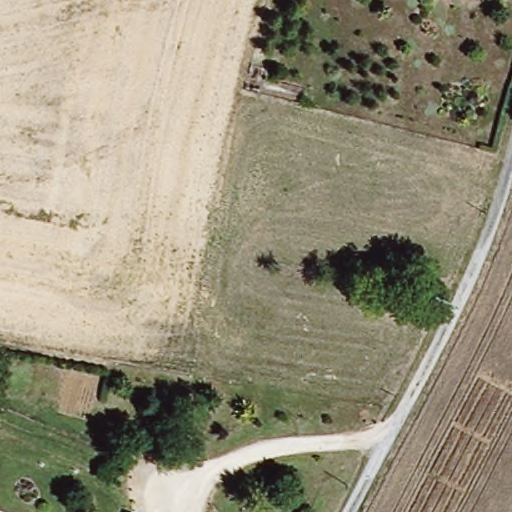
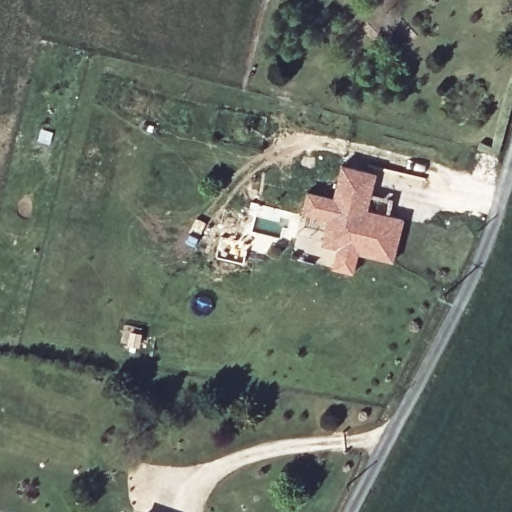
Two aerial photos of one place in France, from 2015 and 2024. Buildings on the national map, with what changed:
new [(308,191),(335,197),(343,165),(377,174),(371,196),(391,201),(387,216),(403,219),(392,262),(322,244),(329,218),(302,212),(308,191)]

